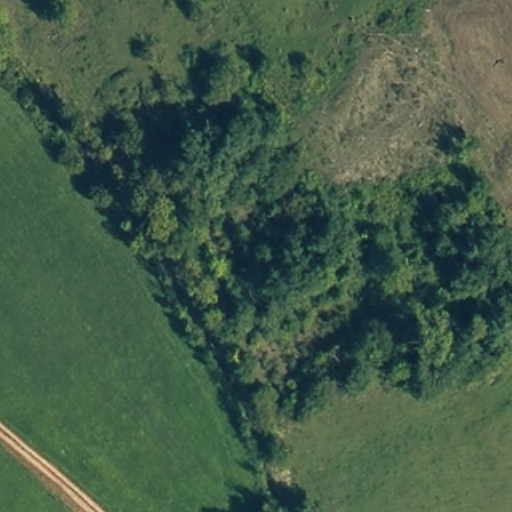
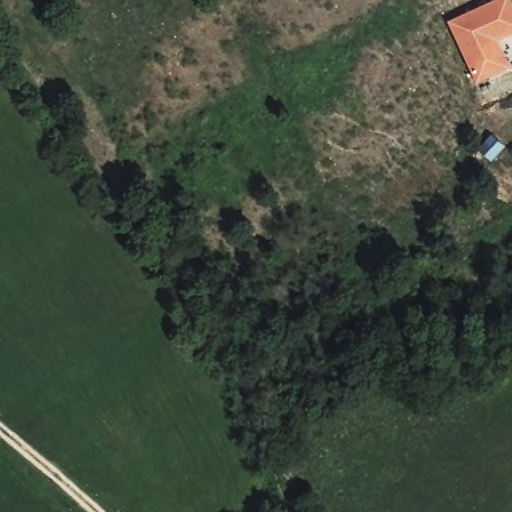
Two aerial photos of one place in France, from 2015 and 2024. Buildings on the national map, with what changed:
new [(511,0),(512,2),(512,33),(498,40),(510,68),(477,84),(448,21),(495,0),(511,0)]

